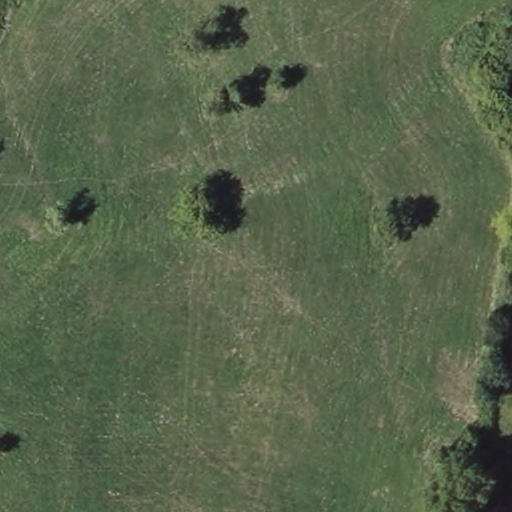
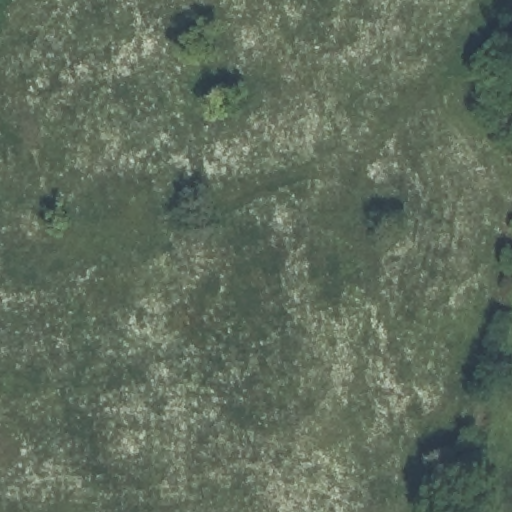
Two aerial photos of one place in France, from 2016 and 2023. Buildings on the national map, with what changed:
[]

